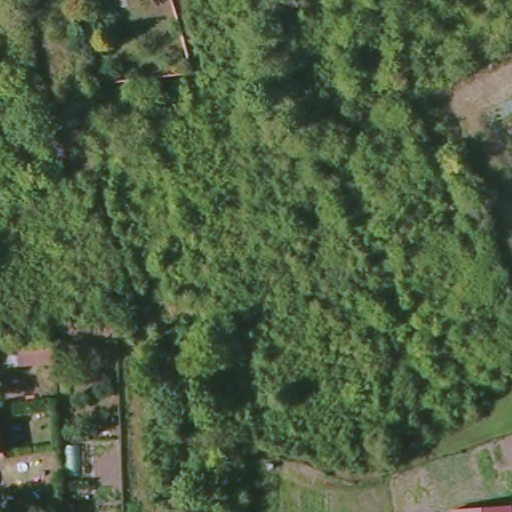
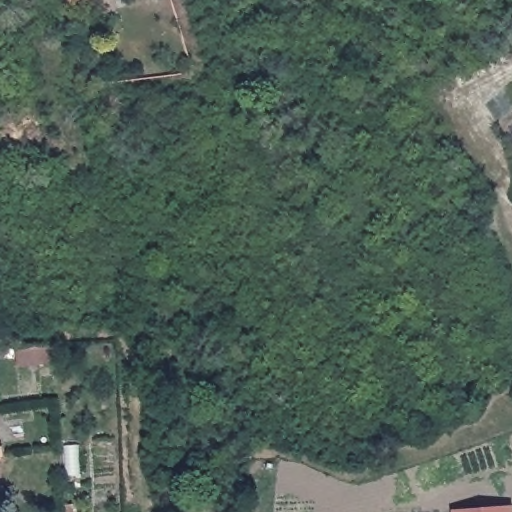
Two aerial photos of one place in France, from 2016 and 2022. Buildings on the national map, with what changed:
unchanged [(69,0),(90,0),(90,1),(70,5),(69,0)]
unchanged [(54,345),(55,364),(18,367),(16,348),(54,345)]
unchanged [(512,510),(512,512),(449,512),(449,508),(512,504),(512,510)]

